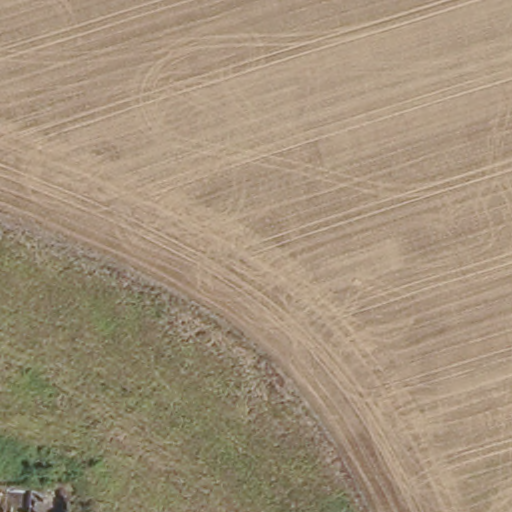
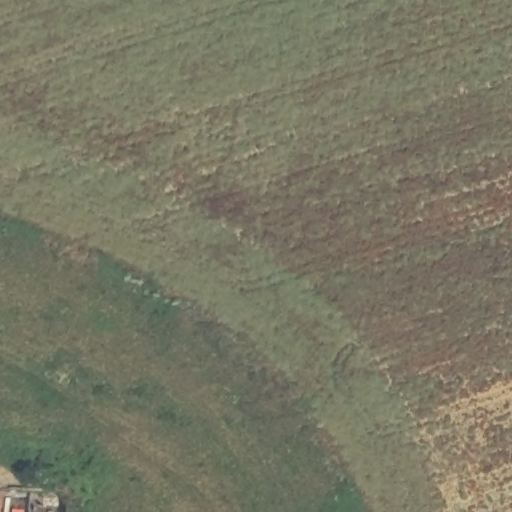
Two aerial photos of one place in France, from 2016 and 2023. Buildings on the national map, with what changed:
[]

